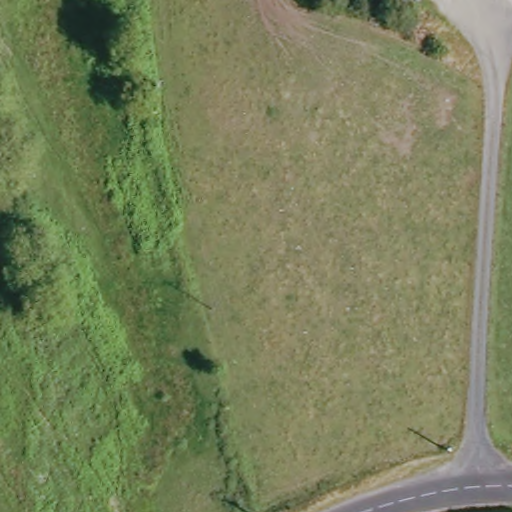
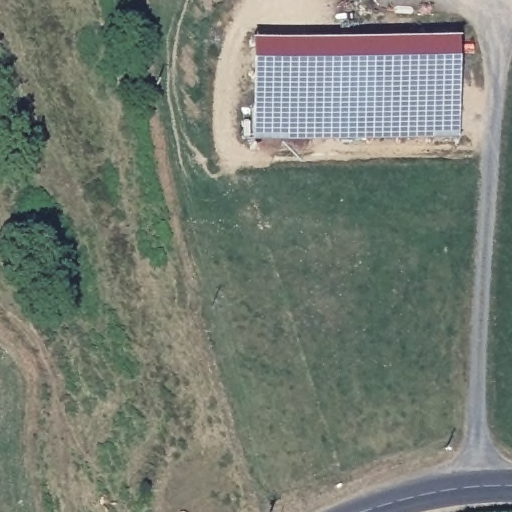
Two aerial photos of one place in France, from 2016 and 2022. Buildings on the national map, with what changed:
new [(253,45),(458,42),(459,140),(255,142),(253,45)]

